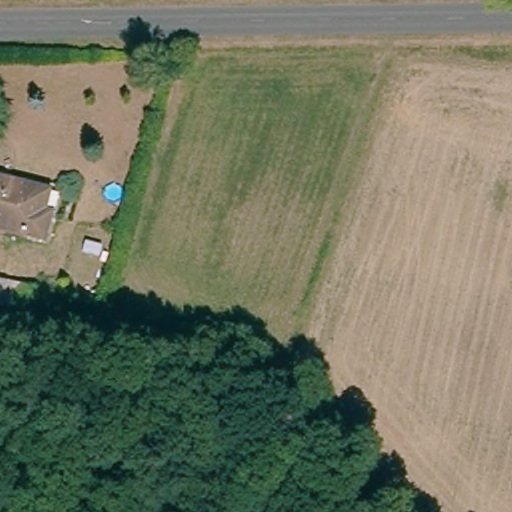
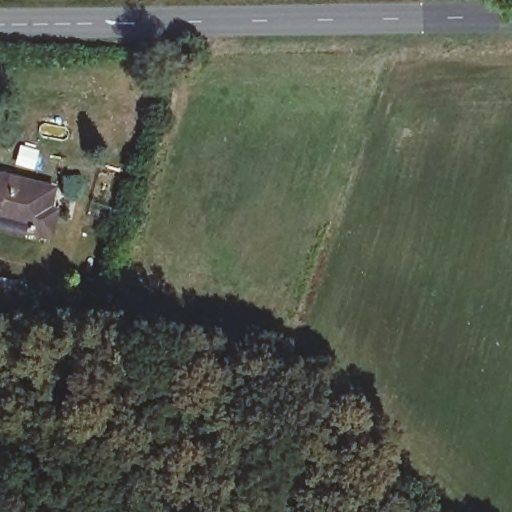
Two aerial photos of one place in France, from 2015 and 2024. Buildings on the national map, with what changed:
unchanged [(44,193),(39,214),(47,216),(39,239),(0,229),(0,181),(44,193)]
unchanged [(34,290),(27,327),(0,324),(0,284),(34,290)]

